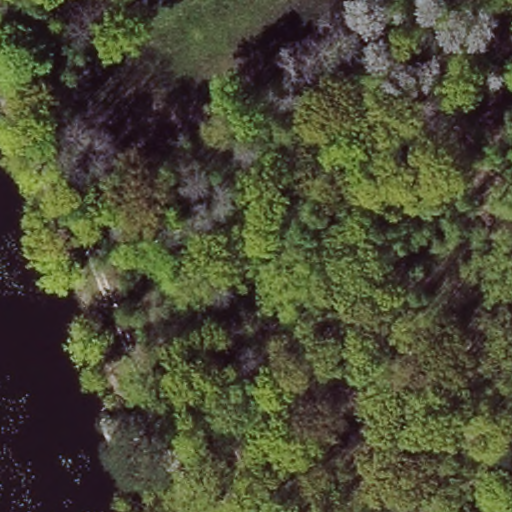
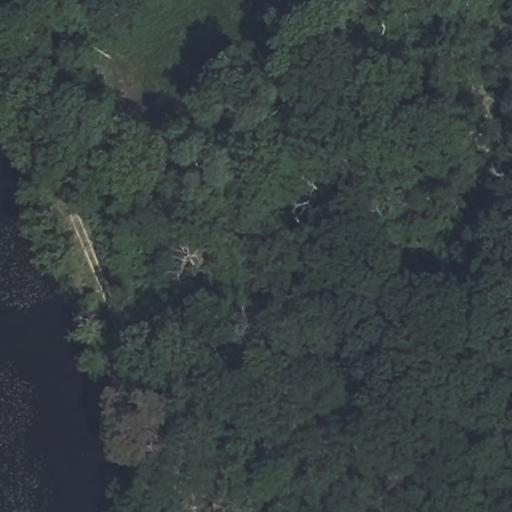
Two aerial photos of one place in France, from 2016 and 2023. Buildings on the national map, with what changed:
unchanged [(163,459),(143,467),(133,441),(153,434),(163,459)]

